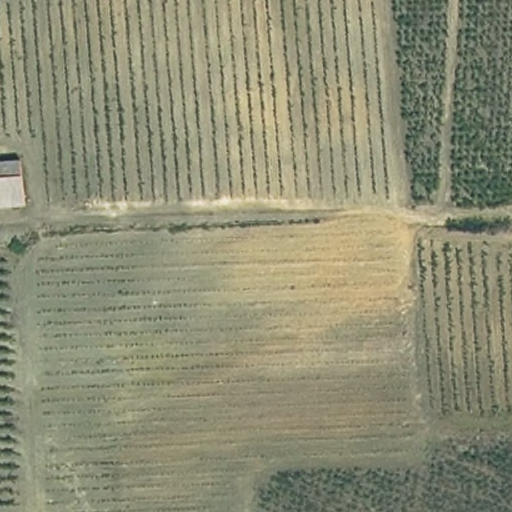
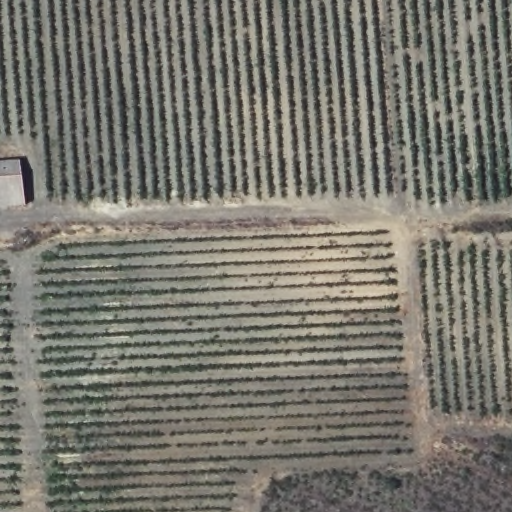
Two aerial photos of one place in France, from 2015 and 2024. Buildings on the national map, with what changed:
unchanged [(23,202),(0,204),(0,158),(20,157),(23,202)]

